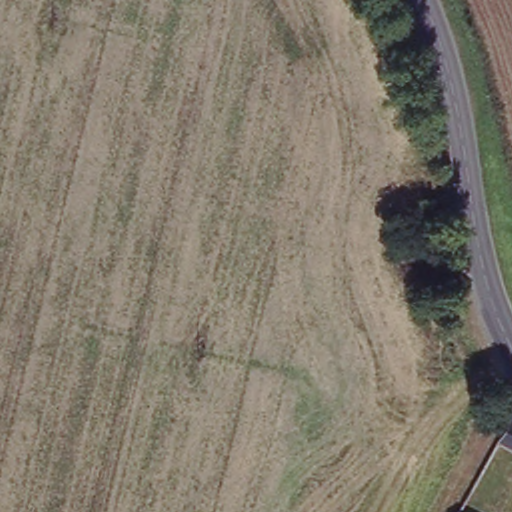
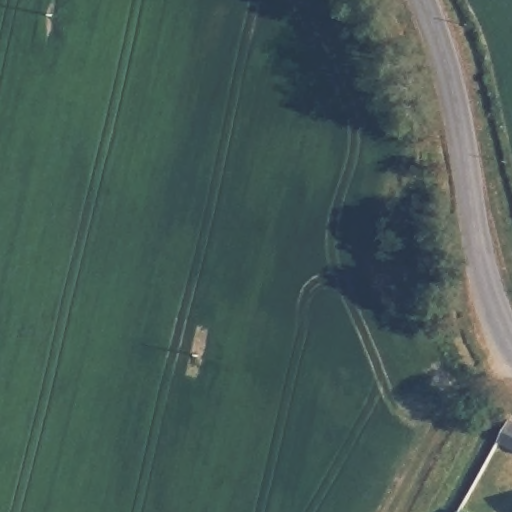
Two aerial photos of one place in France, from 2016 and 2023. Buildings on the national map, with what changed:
unchanged [(503,449),(512,435),(512,454),(503,449)]

